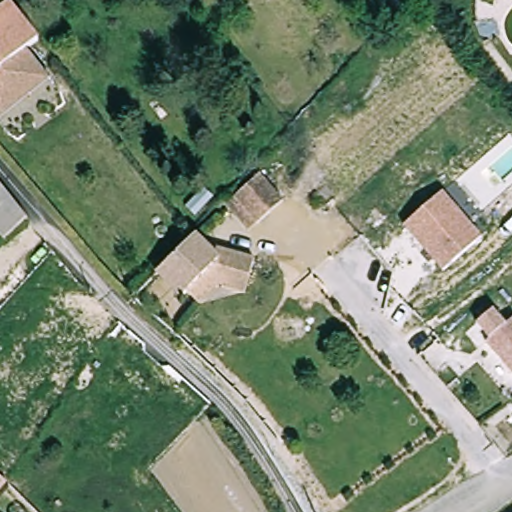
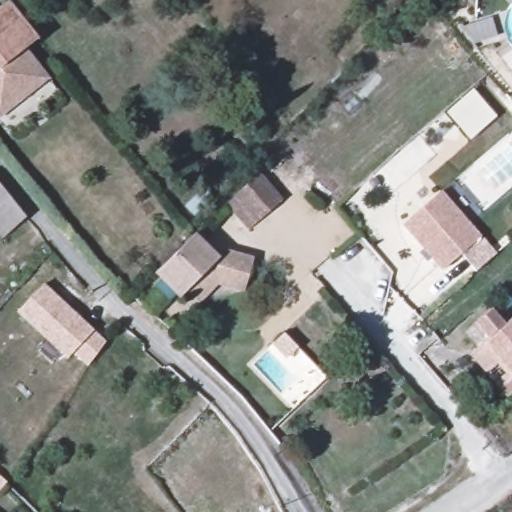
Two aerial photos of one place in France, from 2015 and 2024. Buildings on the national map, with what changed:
unchanged [(0,121),(0,10),(6,5),(37,44),(25,53),(45,76),(49,83),(0,121)]
unchanged [(280,205),(249,233),(226,209),(259,175),(280,205)]
unchanged [(445,272),(405,221),(445,188),(485,235),(445,272)]
unchanged [(6,237),(0,231),(0,190),(26,223),(6,237)]
unchanged [(183,297),(180,300),(155,276),(200,232),(228,258),(250,264),(242,297),(220,293),(225,288),(221,285),(196,308),(183,297)]
new [(72,353),(67,359),(16,313),(43,284),(93,331),(105,342),(87,367),(72,353)]
unchanged [(512,366),(490,342),(512,323),(512,366)]
new [(282,332),(296,347),(285,357),(271,343),(282,332)]
unchanged [(11,479),(0,490),(0,469),(11,479)]

